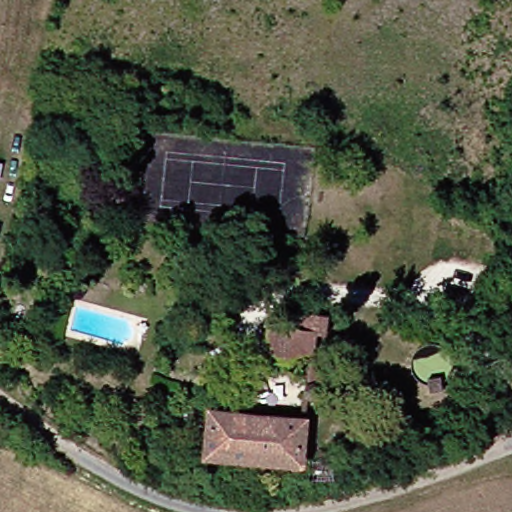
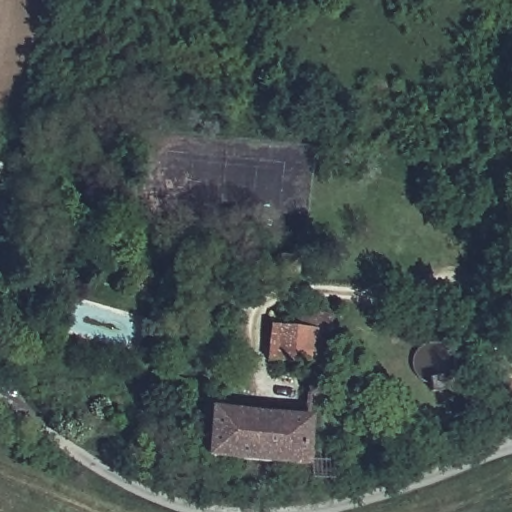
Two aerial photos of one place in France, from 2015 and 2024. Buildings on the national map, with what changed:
unchanged [(260,287),(258,270),(277,268),(279,285),(260,287)]
unchanged [(320,332),(311,332),(305,368),(261,363),(266,328),(291,331),(292,312),(322,315),(320,332)]
unchanged [(179,357),(167,355),(173,332),(184,335),(179,357)]
unchanged [(320,404),(321,407),(317,412),(306,406),(307,401),(320,404)]
unchanged [(302,408),(295,469),(200,458),(204,416),(284,422),(287,407),(302,408)]

